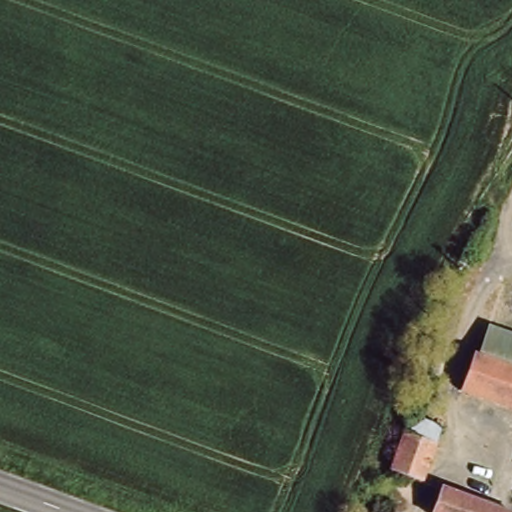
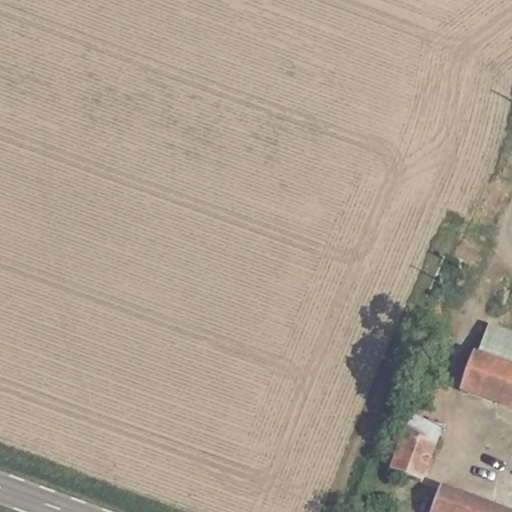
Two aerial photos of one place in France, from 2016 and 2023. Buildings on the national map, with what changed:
unchanged [(492,325),(512,331),(512,364),(482,353),(492,325)]
unchanged [(512,364),(512,406),(463,389),(477,351),(482,353),(512,364)]
unchanged [(440,424),(422,480),(390,469),(410,413),(440,424)]
unchanged [(512,506),(512,512),(440,512),(435,510),(445,482),(512,506)]

